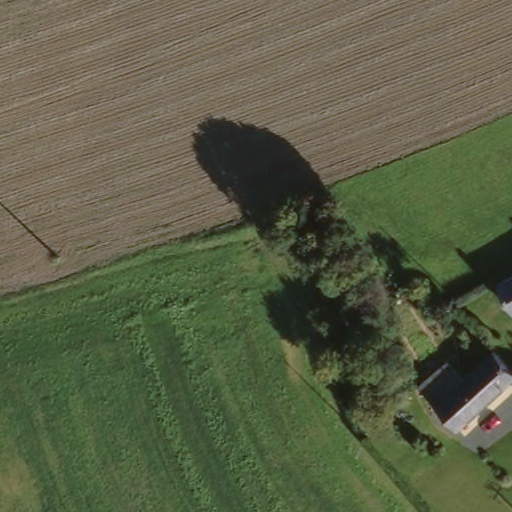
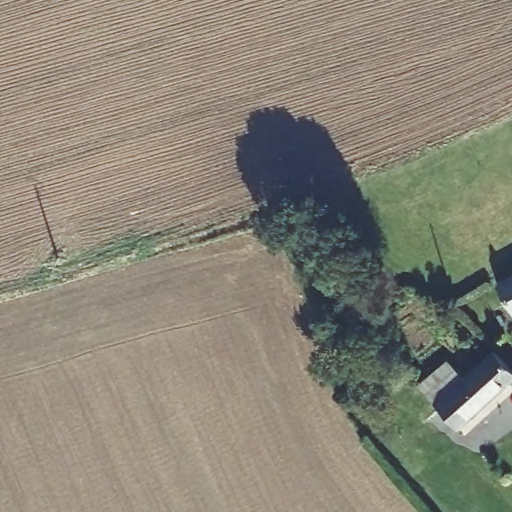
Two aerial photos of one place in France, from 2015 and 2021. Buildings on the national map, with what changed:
unchanged [(512,275),(512,311),(497,283),(512,275)]
unchanged [(449,429),(414,387),(444,363),(457,379),(488,352),(503,371),(512,364),(512,380),(511,379),(449,429)]

